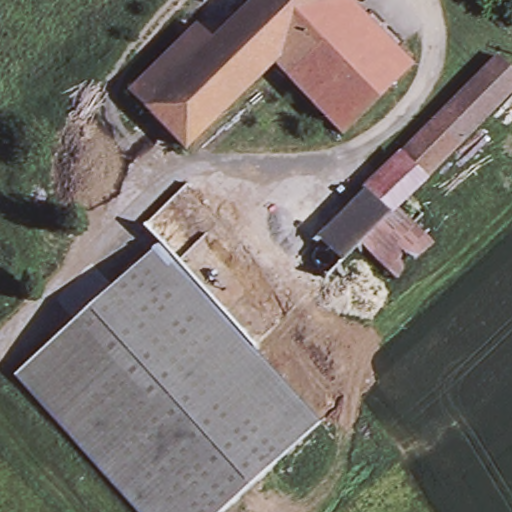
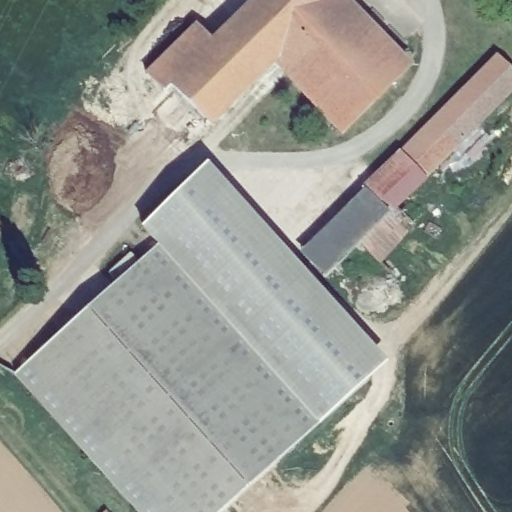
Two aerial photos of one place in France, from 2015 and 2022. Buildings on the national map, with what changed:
unchanged [(186,146),(134,88),(201,26),(214,41),(258,0),(340,0),(276,61),(186,146)]
unchanged [(345,0),(410,68),(344,134),(276,61),(340,0),(345,0)]
new [(512,95),(398,209),(418,229),(381,263),(361,241),(326,278),(302,251),(366,188),(363,186),(401,151),(496,54),(512,70),(512,95)]
demolished [(501,63),(512,74),(512,98),(498,110),(476,86),(501,63)]
demolished [(464,130),(463,128),(452,103),(476,86),(498,110),(467,139),(464,130)]
demolished [(457,121),(457,123),(465,141),(429,178),(411,159),(408,156),(453,112),(457,121)]
demolished [(429,178),(410,196),(397,209),(361,244),(301,302),(282,280),(411,159),(429,178)]
new [(144,228),(209,167),(388,362),(321,423),(319,419),(255,347),(163,241),(158,245),(144,228)]
demolished [(148,224),(193,181),(282,280),(301,302),(255,347),(163,241),(148,224)]
unchanged [(321,423),(220,512),(141,512),(14,371),(92,302),(163,241),(255,347),(319,419),(321,423)]

